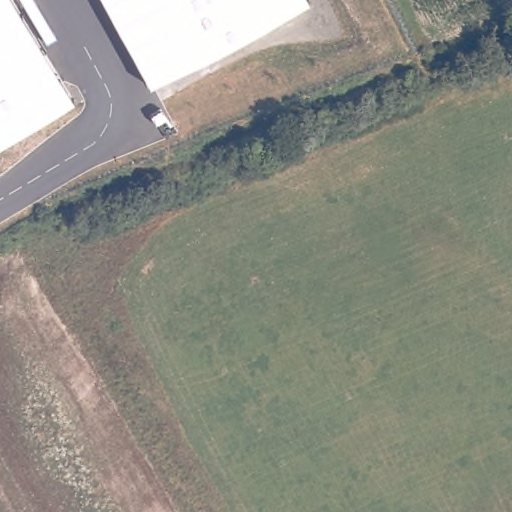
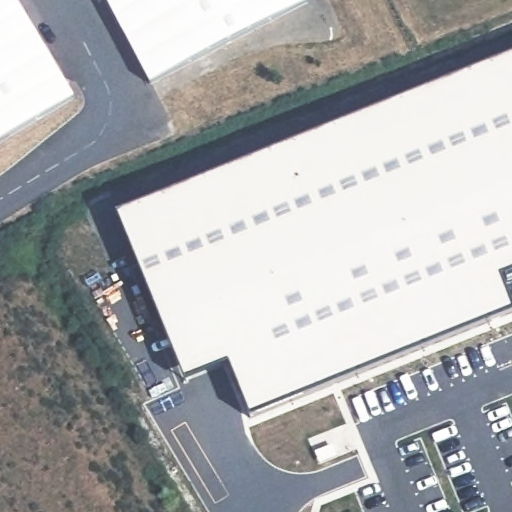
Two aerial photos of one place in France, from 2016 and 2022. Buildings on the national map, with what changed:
unchanged [(75,99),(0,144),(0,0),(16,0),(75,99)]
unchanged [(309,1),(148,85),(104,0),(309,0),(309,1)]
new [(226,364),(183,382),(115,214),(512,51),(512,312),(249,418),(226,364)]

